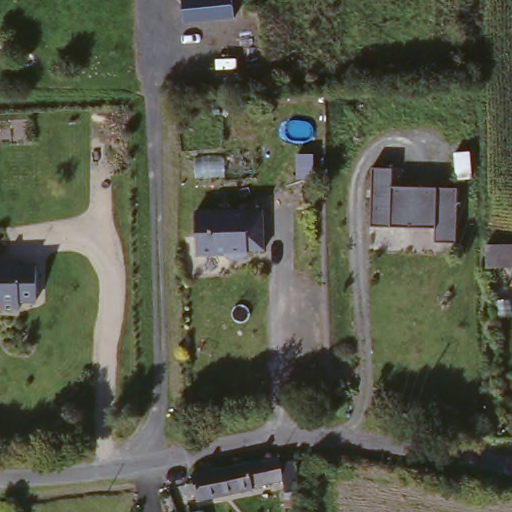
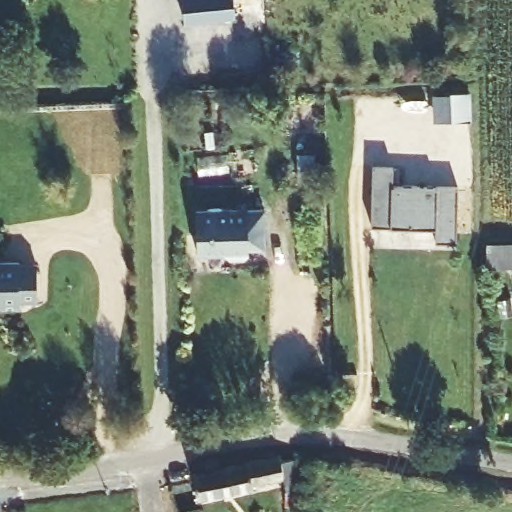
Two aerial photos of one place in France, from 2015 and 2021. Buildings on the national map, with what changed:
unchanged [(182,22),(181,0),(232,0),(233,20),(182,22)]
new [(472,122),(434,124),(432,96),(471,94),(472,122)]
unchanged [(389,167),(388,185),(454,187),(452,242),(431,241),(431,227),(366,226),(368,167),(389,167)]
unchanged [(266,212),(268,233),(268,252),(254,252),(248,260),(231,260),(226,255),(198,255),(195,215),(249,212),(266,212)]
unchanged [(512,248),(512,267),(498,267),(497,248),(512,248)]
unchanged [(39,301),(22,302),(22,311),(4,311),(3,302),(0,302),(0,266),(36,266),(39,301)]
unchanged [(202,471),(257,457),(258,461),(277,458),(280,476),(274,477),(277,492),(264,491),(262,482),(177,505),(172,481),(202,471)]

